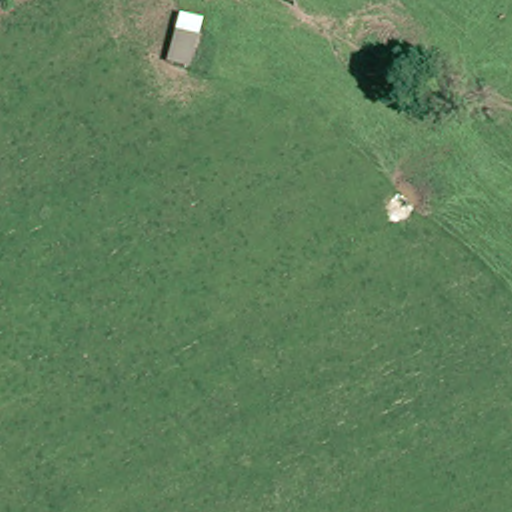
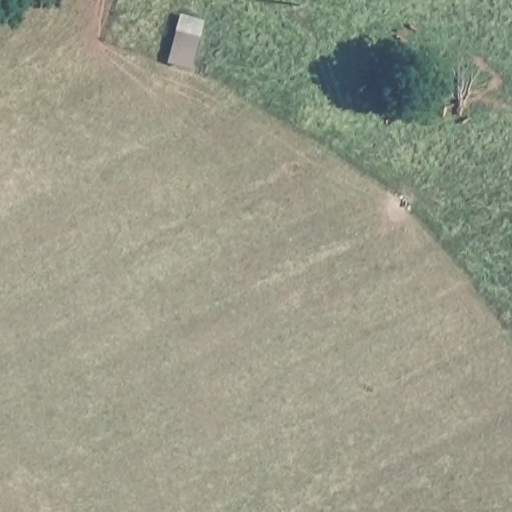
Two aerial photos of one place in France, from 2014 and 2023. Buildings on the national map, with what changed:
unchanged [(198,41),(190,67),(177,62),(184,37),(198,41)]

